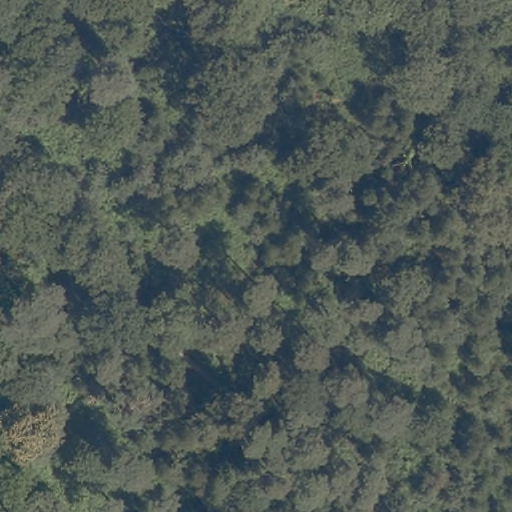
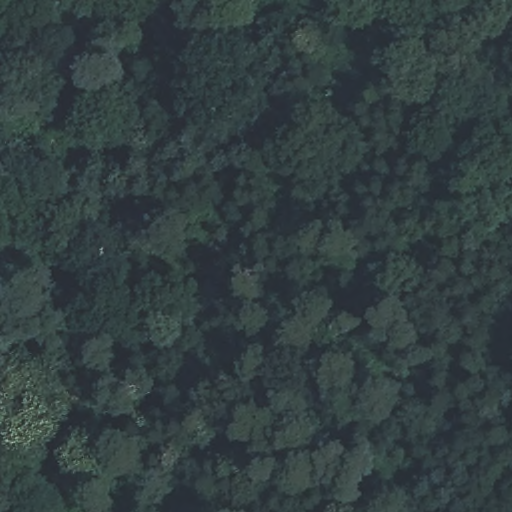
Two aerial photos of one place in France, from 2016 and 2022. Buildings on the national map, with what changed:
[]

